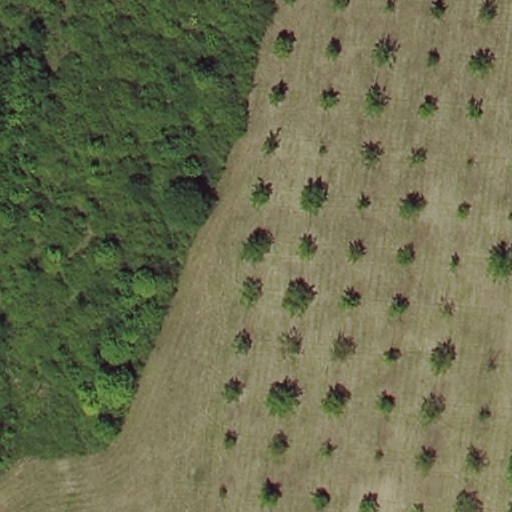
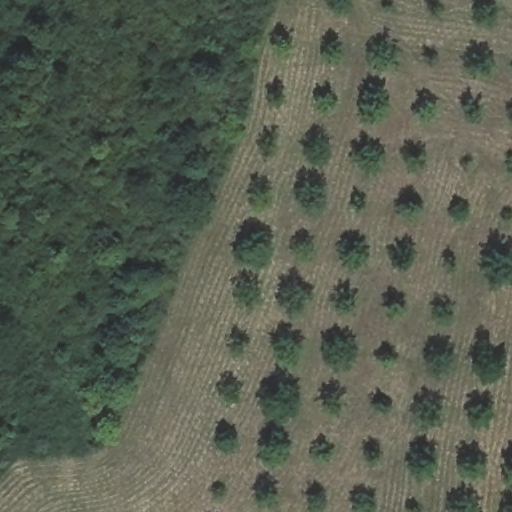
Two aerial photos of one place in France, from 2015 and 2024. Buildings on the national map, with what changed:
[]

